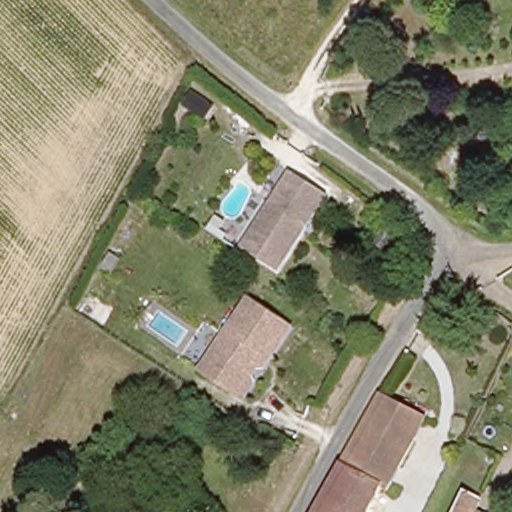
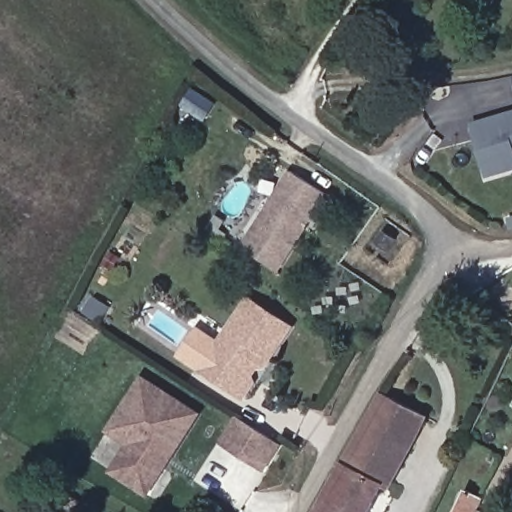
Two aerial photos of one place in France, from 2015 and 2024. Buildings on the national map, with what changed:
new [(488,178),(471,124),(512,111),(512,171),(488,178)]
unchanged [(274,269),(238,246),(286,170),(323,192),(274,269)]
unchanged [(284,327),(263,358),(253,352),(250,357),(254,362),(231,395),(198,372),(212,350),(214,342),(241,299),(284,327)]
new [(150,500),(110,472),(126,445),(106,431),(142,375),(204,413),(150,500)]
unchanged [(384,491),(377,490),(366,512),(316,512),(384,392),(427,413),(384,491)]
new [(266,473),(220,443),(238,416),(284,445),(266,473)]
unchanged [(479,497),(472,512),(452,512),(463,488),(479,497)]

